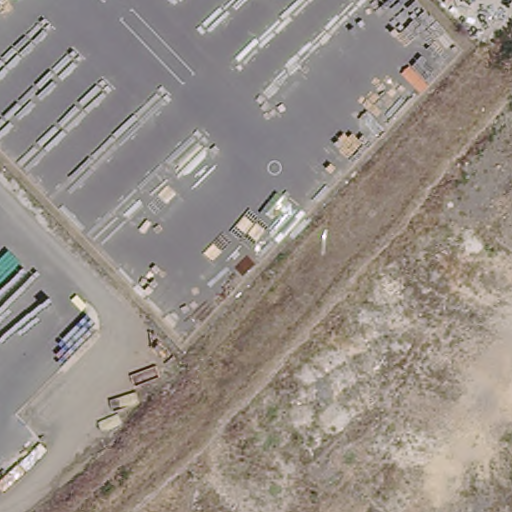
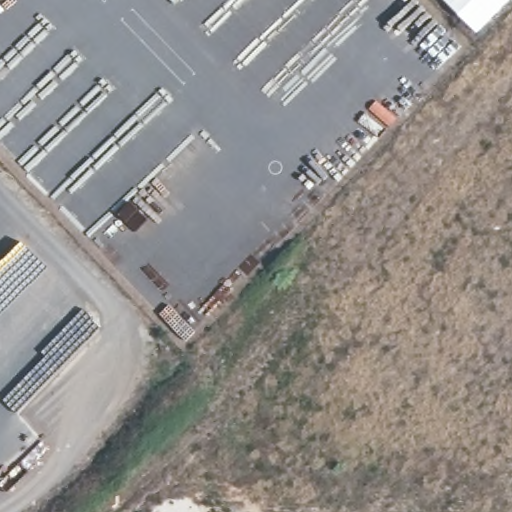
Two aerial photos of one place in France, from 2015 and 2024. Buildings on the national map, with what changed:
new [(478,35),(443,0),(511,0),(478,35)]
unchanged [(0,3),(1,4),(0,5),(0,3)]
new [(0,477),(2,480),(0,481),(0,477)]

